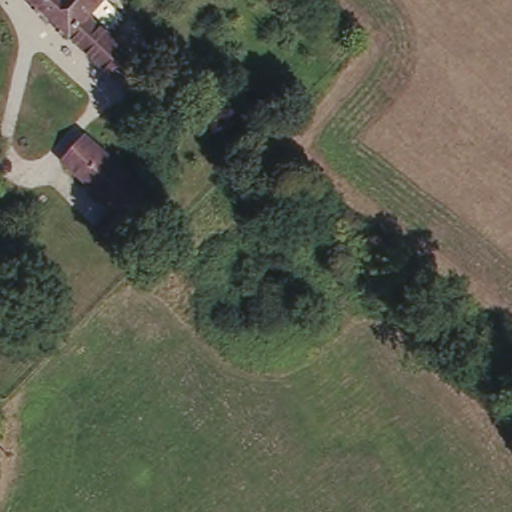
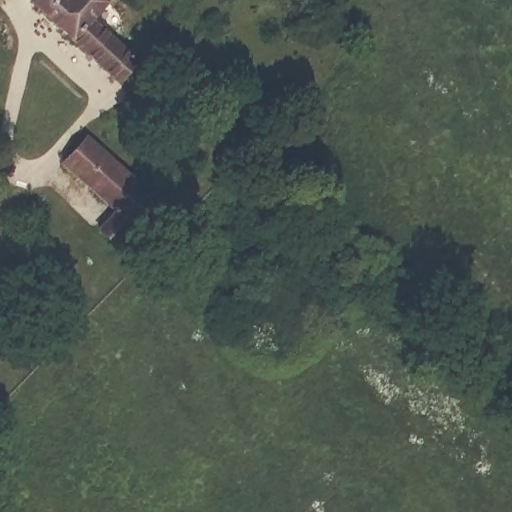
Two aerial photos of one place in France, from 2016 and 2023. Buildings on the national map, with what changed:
unchanged [(99,3),(85,16),(130,60),(113,79),(30,0),(96,0),(99,3)]
unchanged [(154,194),(109,241),(95,226),(113,207),(63,157),(87,129),(154,194)]

